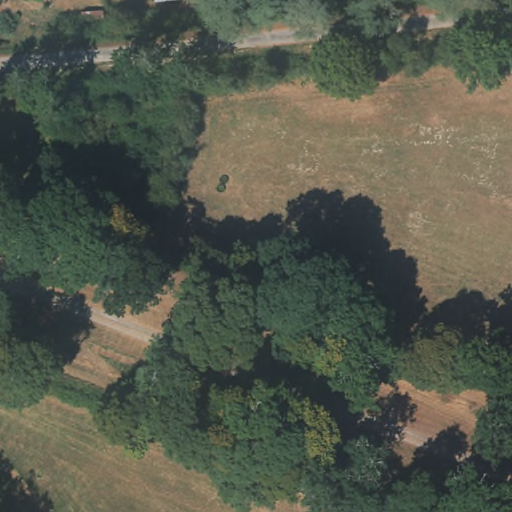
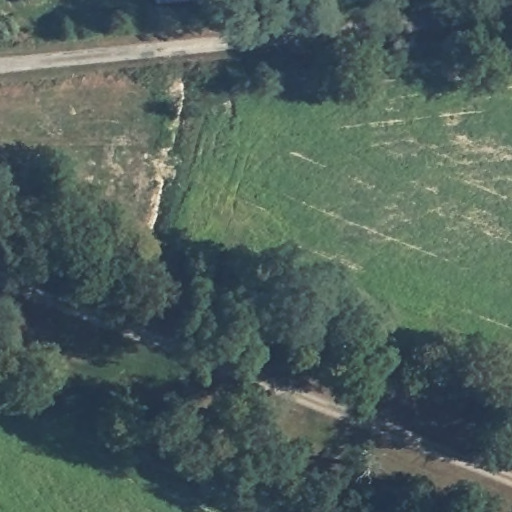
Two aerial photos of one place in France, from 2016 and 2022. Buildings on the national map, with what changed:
[]

